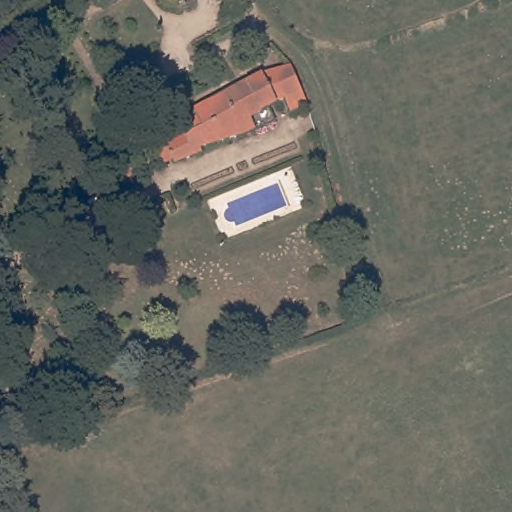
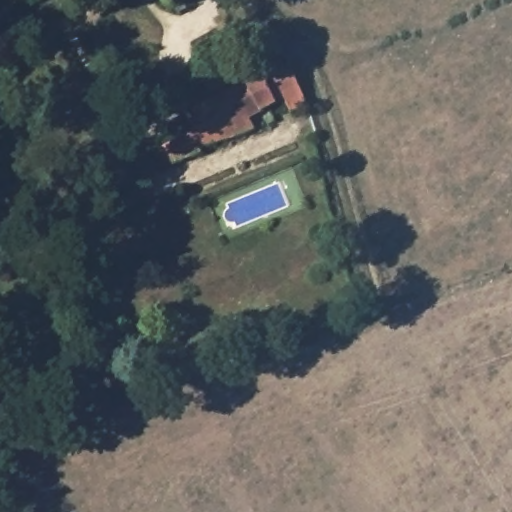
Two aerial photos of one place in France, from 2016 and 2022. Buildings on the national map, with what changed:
unchanged [(195,6),(191,10),(185,13),(179,12),(175,10),(169,4),(167,0),(195,0),(196,2),(195,6)]
unchanged [(199,124),(191,109),(262,72),(263,75),(290,62),(306,96),(307,101),(283,114),(277,101),(248,116),(254,128),(216,147),(217,150),(192,163),(191,160),(170,170),(159,145),(199,124)]

